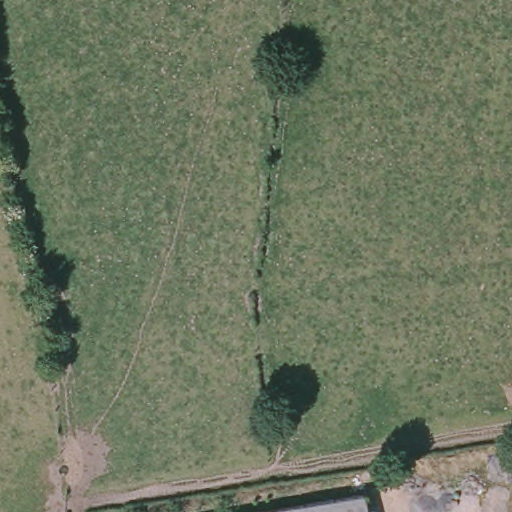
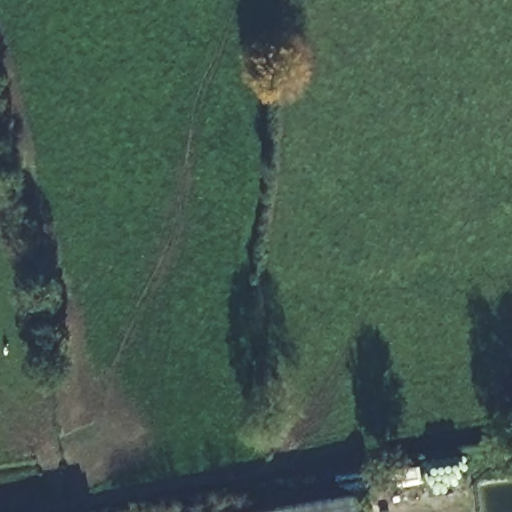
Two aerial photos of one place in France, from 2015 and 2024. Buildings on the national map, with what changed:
unchanged [(372,512),(257,512),(370,494),(372,512)]

